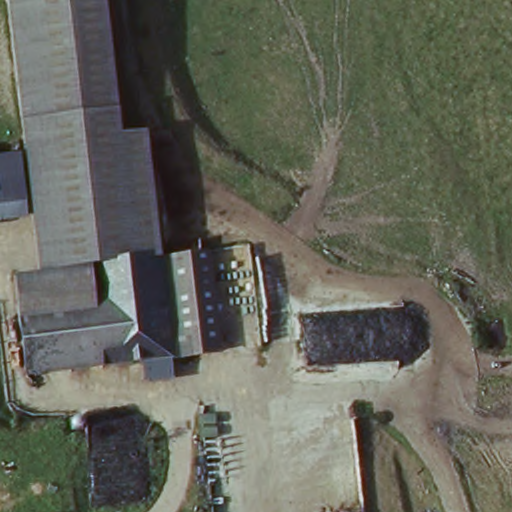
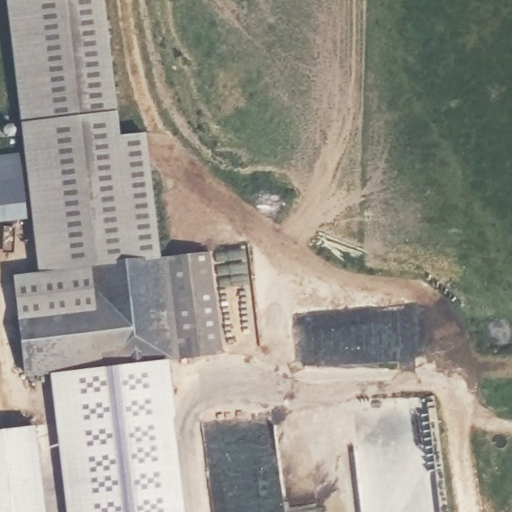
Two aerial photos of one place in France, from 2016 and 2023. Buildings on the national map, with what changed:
unchanged [(27,220),(0,222),(0,156),(22,154),(5,0),(104,0),(119,137),(147,135),(159,257),(94,265),(88,265),(36,271),(27,220)]
unchanged [(207,253),(217,349),(189,352),(187,322),(165,324),(159,257),(207,253)]
unchanged [(139,379),(137,357),(96,361),(88,265),(159,257),(165,324),(187,322),(189,352),(166,354),(168,376),(139,379)]
unchanged [(96,361),(22,368),(13,273),(88,265),(96,361)]
new [(186,512),(61,512),(50,374),(172,363),(186,512)]
new [(52,512),(0,512),(0,431),(45,427),(52,512)]

